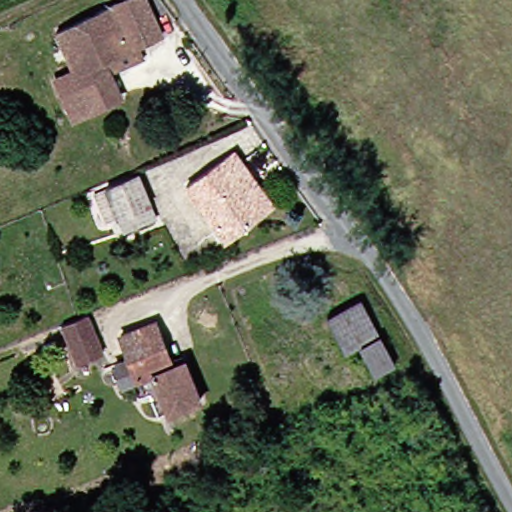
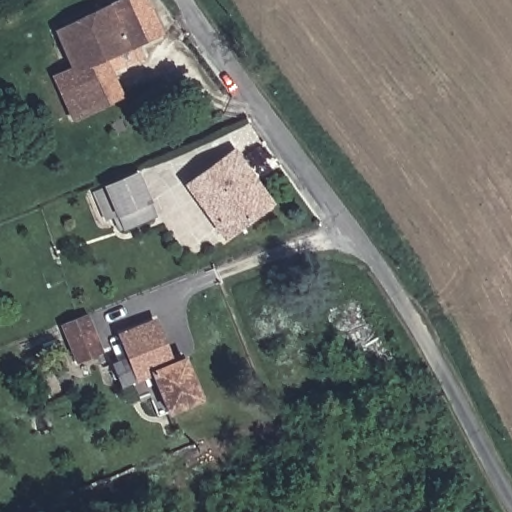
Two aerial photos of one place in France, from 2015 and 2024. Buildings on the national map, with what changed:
unchanged [(64,114),(48,76),(66,69),(50,32),(123,0),(140,0),(156,37),(133,47),(138,60),(110,72),(106,73),(115,92),(85,106),(64,114)]
unchanged [(265,205),(257,210),(217,240),(176,188),(223,151),(233,165),(265,205)]
unchanged [(114,223),(107,209),(93,177),(125,164),(139,195),(145,210),(114,223)]
unchanged [(387,366),(368,375),(356,349),(341,355),(322,318),(354,302),(387,366)]
unchanged [(80,315),(96,356),(71,367),(54,325),(80,315)]
unchanged [(160,365),(175,358),(193,402),(150,420),(133,378),(114,387),(106,369),(119,363),(109,338),(143,323),(160,365)]

